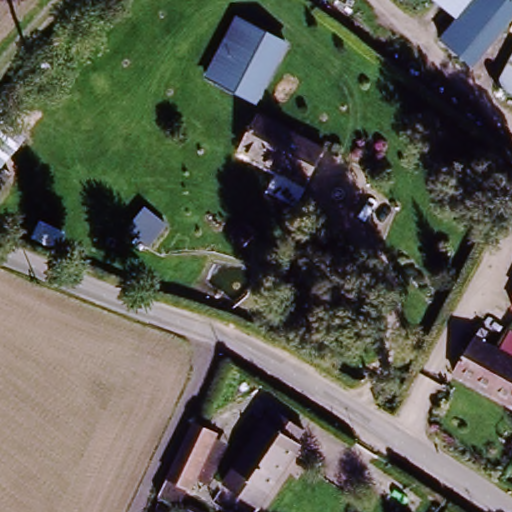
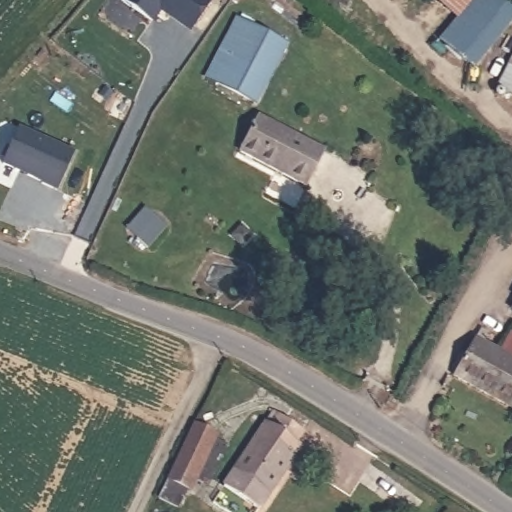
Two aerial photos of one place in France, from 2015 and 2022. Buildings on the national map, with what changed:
new [(191,31),(164,12),(167,8),(161,4),(150,20),(119,0),(212,0),(191,31)]
unchanged [(467,69),(441,45),(456,25),(433,7),(438,0),(502,0),(512,8),(512,15),(467,69)]
unchanged [(248,20),(286,36),(261,96),(211,76),(218,62),(228,66),(248,20)]
unchanged [(257,120),(324,146),(308,186),(241,160),(257,120)]
new [(19,129),(74,153),(57,191),(43,185),(43,183),(3,165),(19,129)]
unchanged [(512,364),(512,412),(458,381),(478,345),(512,364)]
unchanged [(265,421),(298,442),(290,453),(294,456),(264,500),(256,512),(249,512),(218,491),(228,476),(265,421)]
unchanged [(190,449),(211,458),(186,508),(166,498),(163,497),(186,447),(190,449)]

